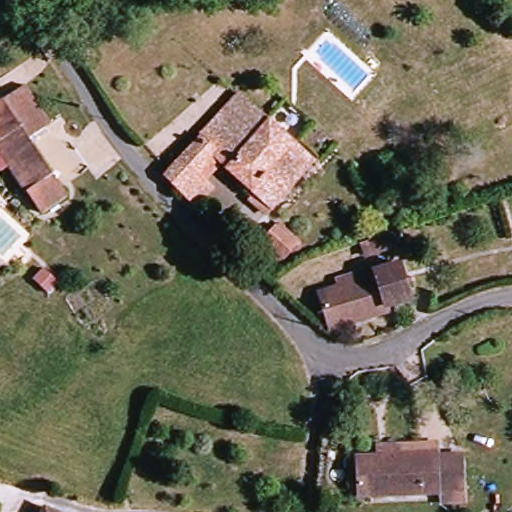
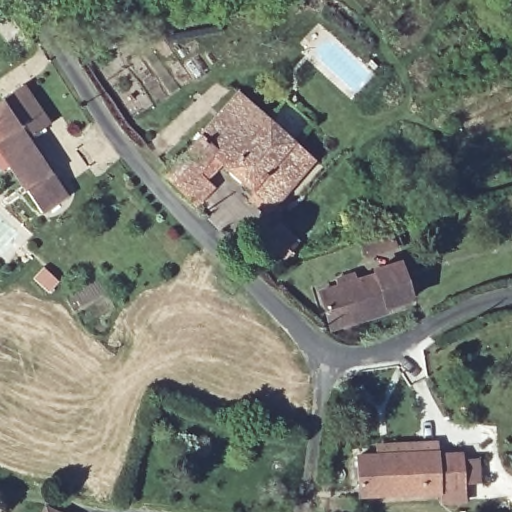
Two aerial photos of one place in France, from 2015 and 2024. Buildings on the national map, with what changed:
unchanged [(19,91),(43,126),(31,134),(71,194),(44,212),(0,146),(0,104),(19,91)]
unchanged [(192,177),(212,196),(197,210),(165,177),(243,95),(315,161),(271,209),(213,155),(192,177)]
unchanged [(278,261),(259,243),(278,227),(297,246),(278,261)]
unchanged [(361,242),(392,231),(396,245),(365,255),(361,242)]
unchanged [(368,277),(400,263),(419,298),(388,314),(369,322),(353,326),(339,332),(328,297),(368,282),(368,277)]
unchanged [(445,487),(443,491),(363,495),(360,455),(441,449),(442,455),(463,452),(466,471),(466,488),(445,487)]
unchanged [(47,511),(53,512),(47,512),(47,511)]

